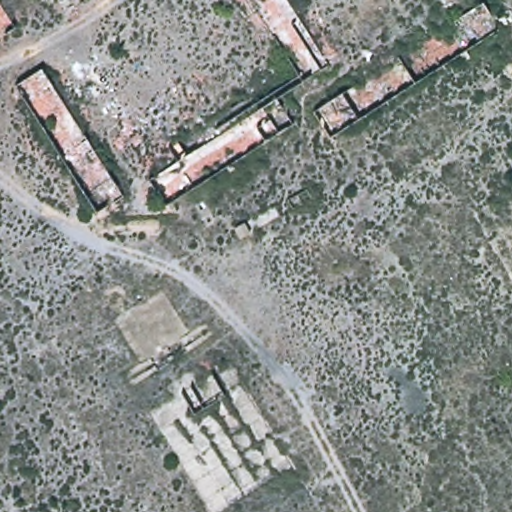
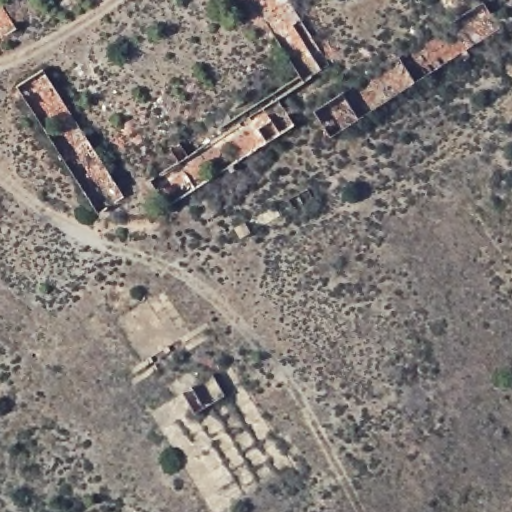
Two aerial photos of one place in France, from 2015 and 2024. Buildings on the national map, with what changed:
unchanged [(477,0),(489,0),(504,23),(468,47),(448,18),(477,0)]
unchanged [(349,85),(366,116),(331,137),(311,109),(349,85)]

